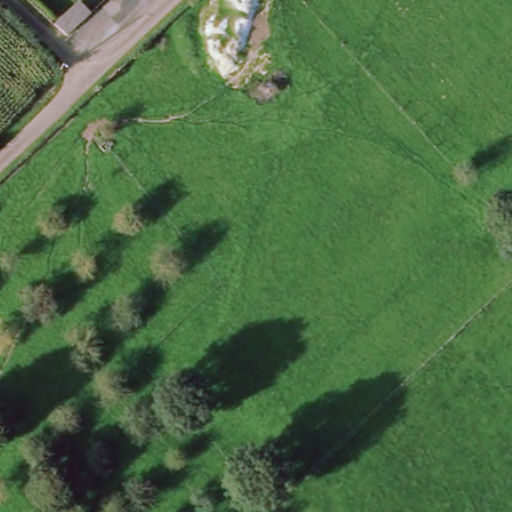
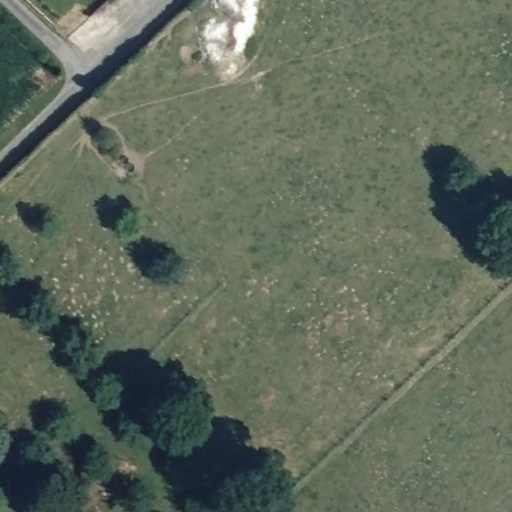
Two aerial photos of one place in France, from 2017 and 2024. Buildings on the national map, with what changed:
unchanged [(56,27),(78,6),(90,18),(68,39),(56,27)]

